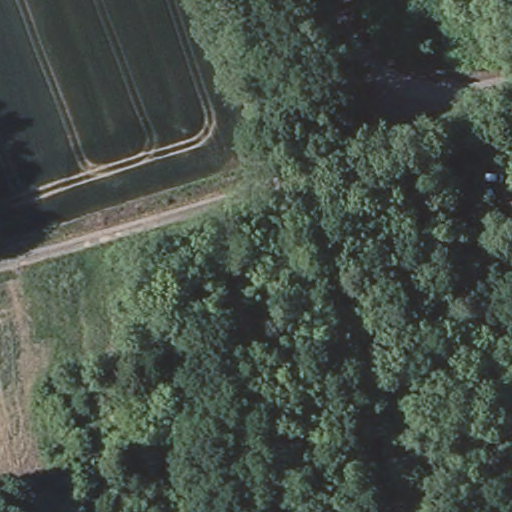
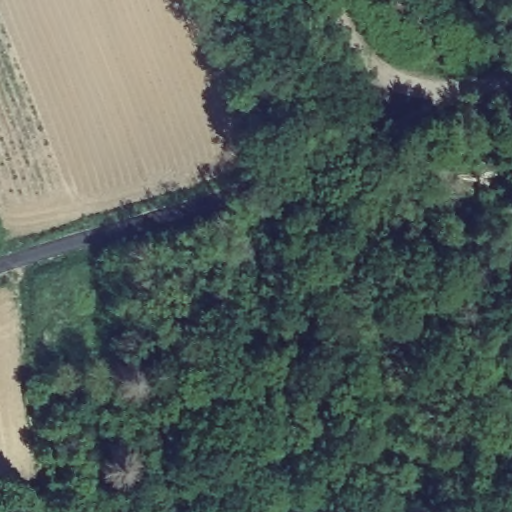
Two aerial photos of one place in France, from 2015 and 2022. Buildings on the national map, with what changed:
unchanged [(501,203),(512,199),(512,232),(501,203)]

